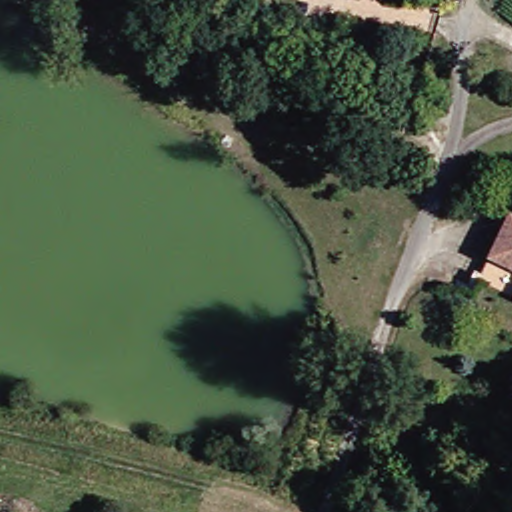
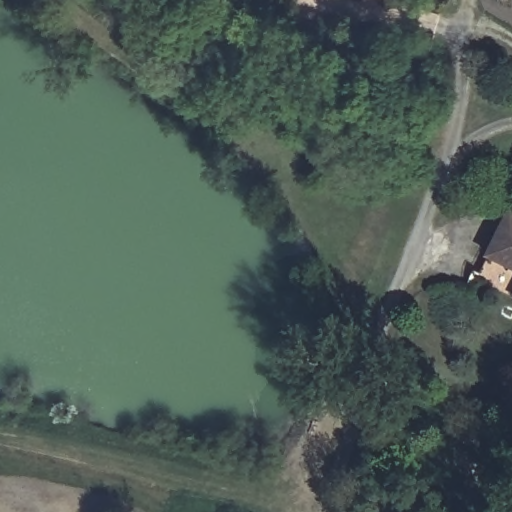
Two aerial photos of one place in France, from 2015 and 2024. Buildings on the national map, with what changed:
unchanged [(512,302),(472,283),(511,204),(512,204),(512,302)]

